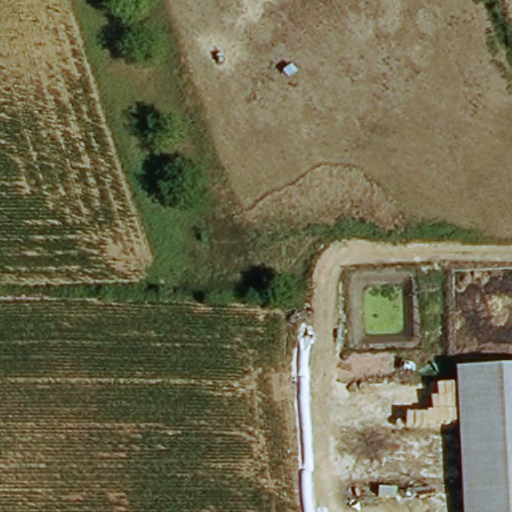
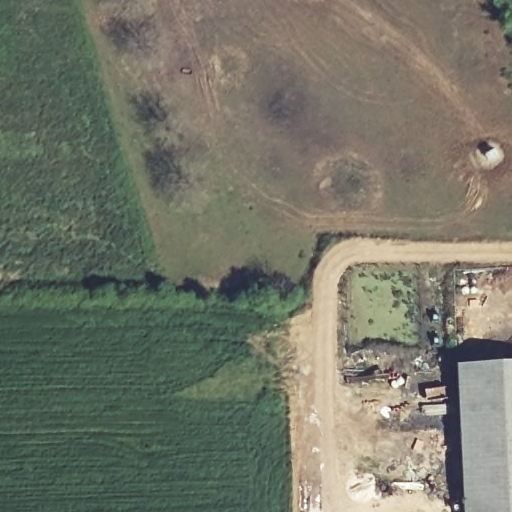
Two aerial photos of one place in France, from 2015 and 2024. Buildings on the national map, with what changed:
unchanged [(512,364),(512,512),(465,512),(458,367),(512,364)]

